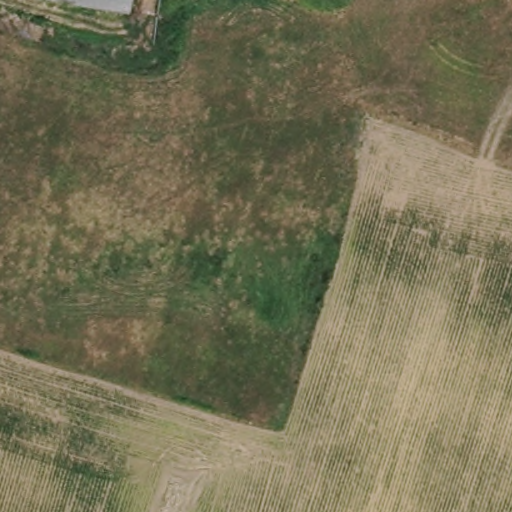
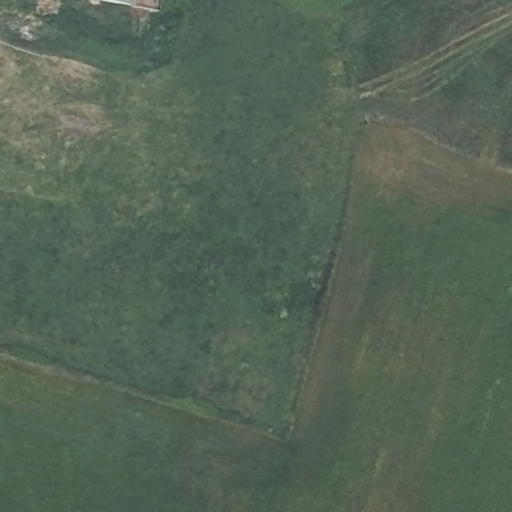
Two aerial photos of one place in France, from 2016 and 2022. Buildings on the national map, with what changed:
unchanged [(139,2),(126,0),(139,0),(139,2)]

